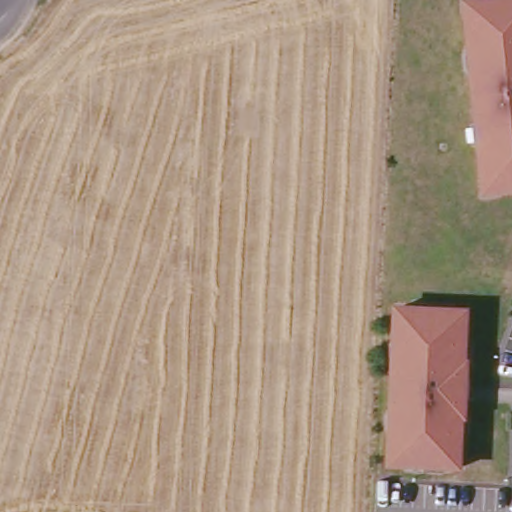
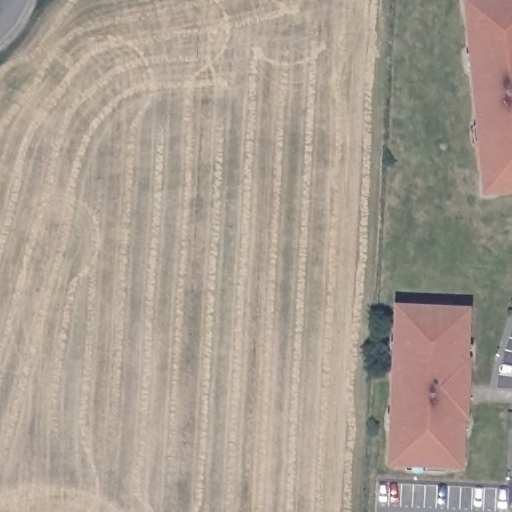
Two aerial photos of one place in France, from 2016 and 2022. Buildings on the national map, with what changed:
unchanged [(488,194),(488,185),(484,144),(490,144),(489,130),(482,130),(476,72),(483,71),(482,56),(475,57),(470,15),(470,5),(480,4),(499,1),(512,0),(512,193),(500,195),(489,195),(488,194)]
unchanged [(413,310),(413,315),(450,315),(450,311),(467,312),(466,347),(460,347),(460,362),(467,363),(465,418),(458,418),(457,433),(462,433),(462,469),(445,468),(445,465),(408,463),(407,467),(391,466),(392,431),(400,431),(400,417),(393,417),(395,360),(402,360),(402,345),(395,345),(397,310),(413,310)]

